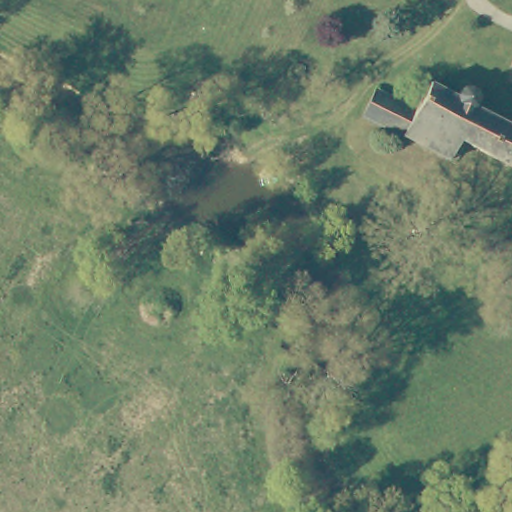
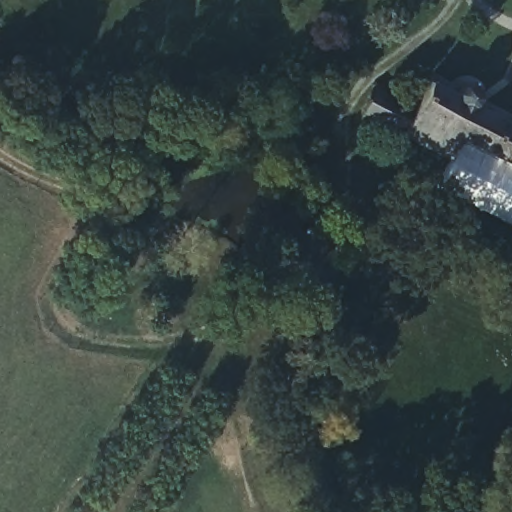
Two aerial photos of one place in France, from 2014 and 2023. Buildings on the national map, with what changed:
unchanged [(456,143),(446,161),(361,116),(371,90),(412,109),(426,81),(454,95),(458,86),(462,84),(466,84),(470,85),(473,88),(474,92),(474,93),(471,107),(512,129),(512,170),(456,143)]
new [(434,188),(446,161),(456,143),(512,170),(512,227),(434,188)]

